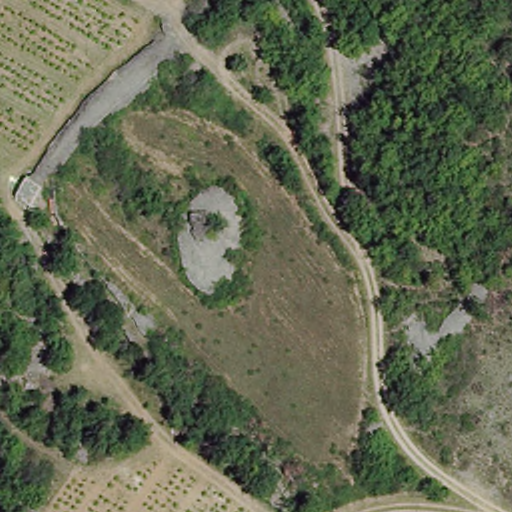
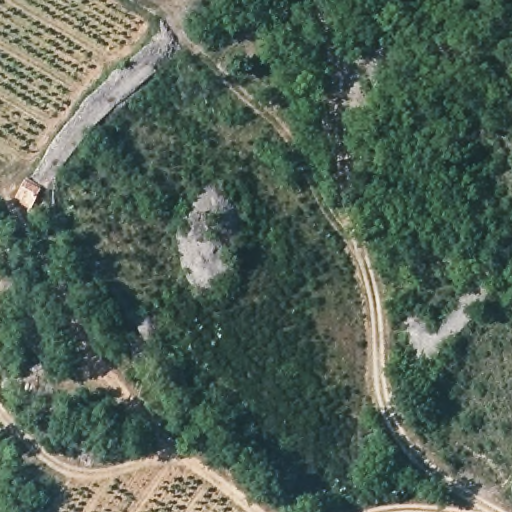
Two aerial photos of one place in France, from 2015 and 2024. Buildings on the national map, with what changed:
unchanged [(38,211),(20,206),(27,183),(46,187),(38,211)]

